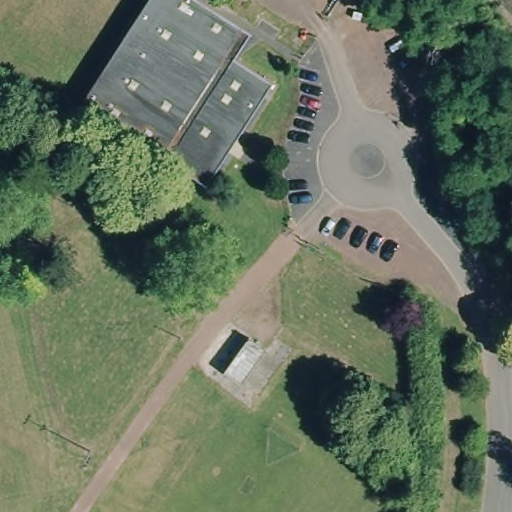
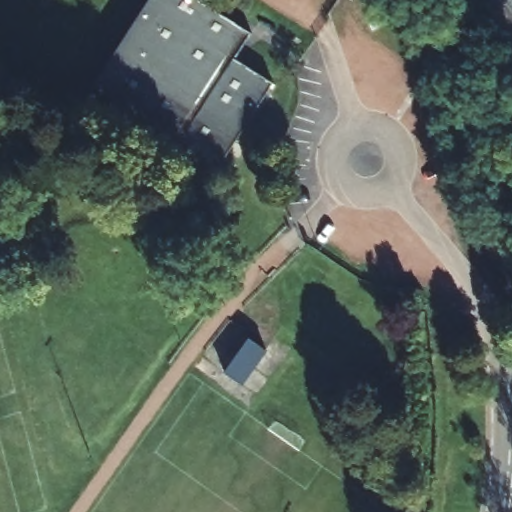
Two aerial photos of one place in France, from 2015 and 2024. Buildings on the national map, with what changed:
unchanged [(151,0),(185,0),(240,36),(224,62),(269,92),(202,194),(91,122),(77,113),(151,0)]
unchanged [(265,345),(240,379),(224,366),(249,332),(265,345)]

